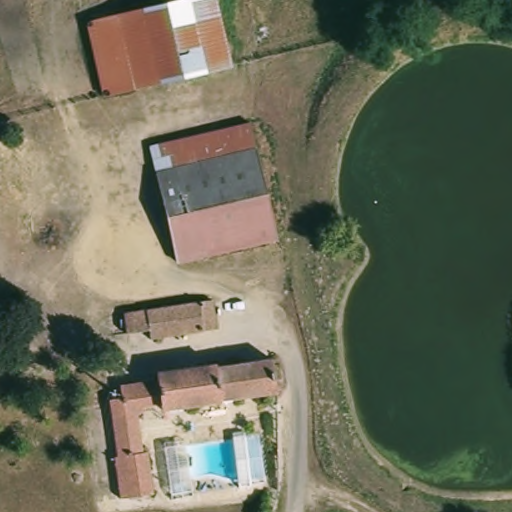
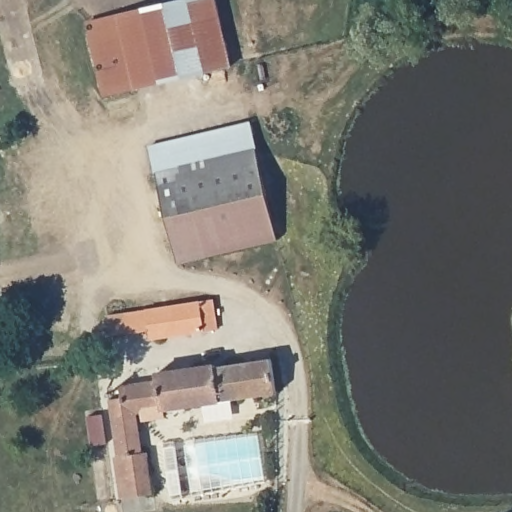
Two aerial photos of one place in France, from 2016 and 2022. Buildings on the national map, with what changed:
unchanged [(177,0),(212,0),(230,60),(106,101),(81,32),(177,0)]
unchanged [(140,154),(241,120),(250,147),(148,182),(140,154)]
unchanged [(250,147),(280,236),(178,267),(148,182),(250,147)]
unchanged [(220,330),(149,341),(148,331),(125,335),(123,313),(216,300),(220,330)]
unchanged [(277,395),(160,413),(159,407),(145,410),(146,415),(140,416),(153,493),(123,497),(109,397),(122,396),(121,384),(155,379),(155,375),(273,358),(277,395)]

